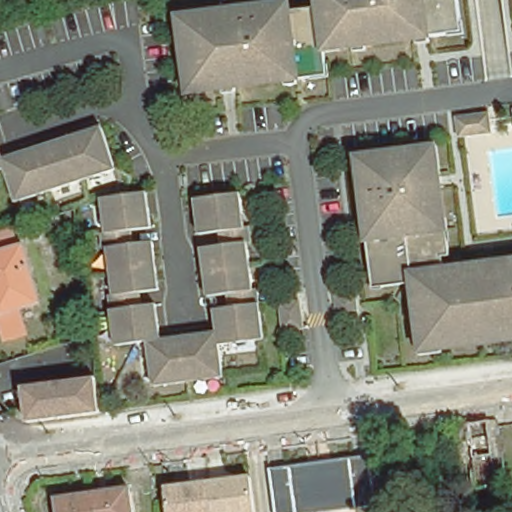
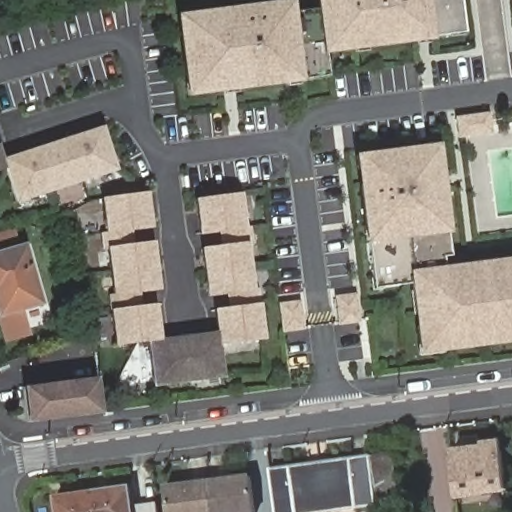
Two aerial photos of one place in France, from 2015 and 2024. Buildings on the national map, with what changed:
unchanged [(212,15),(222,14),(276,7),(287,5),(288,14),(317,11),(316,0),(457,0),(459,24),(461,35),(447,37),(426,40),(415,41),(364,47),(352,49),(338,51),(322,53),(324,67),(326,77),(310,80),(296,82),(284,83),(233,90),(222,91),(201,94),(187,96),(186,85),(177,19),(212,15)]
unchanged [(488,115),(491,135),(458,139),(455,119),(488,115)]
unchanged [(3,162),(35,152),(68,141),(102,130),(116,172),(83,184),(50,195),(17,206),(6,172),(0,174),(0,154),(3,162)]
unchanged [(409,293),(408,286),(381,289),(373,290),(372,281),(369,256),(367,242),(365,228),(363,207),(360,187),(359,176),(356,159),(364,158),(427,150),(435,149),(437,166),(438,177),(444,221),(447,244),(449,257),(441,258),(443,272),(475,267),(494,265),(512,262),(512,342),(486,345),(469,347),(437,351),(417,353),(416,348),(414,328),(409,293)]
unchanged [(148,343),(115,347),(111,312),(109,297),(114,297),(111,274),(108,251),(103,252),(101,236),(106,235),(102,201),(146,195),(151,231),(131,233),(133,247),(153,244),(156,268),(159,292),(139,295),(141,308),(156,307),(160,342),(166,341),(217,335),(214,312),(229,310),(228,296),(208,298),(205,275),(201,251),(222,248),(220,235),(200,237),(195,202),(240,196),(244,230),(249,230),(251,245),(246,246),(249,268),(252,292),(257,291),(259,305),(264,341),(219,347),(223,378),(188,383),(172,386),(154,387),(148,343)]
unchanged [(28,241),(45,298),(16,307),(22,329),(2,335),(0,327),(0,249),(28,241)]
unchanged [(355,295),(359,323),(339,326),(335,298),(355,295)]
unchanged [(303,330),(283,333),(279,305),(300,302),(303,330)]
unchanged [(97,380),(101,415),(28,425),(28,424),(24,389),(97,380)]
demolished [(480,427),(480,430),(490,428),(491,434),(492,440),(485,441),(490,482),(469,485),(462,430),(480,427)]
new [(490,493),(490,495),(458,498),(453,460),(453,456),(486,452),(503,449),(509,491),(490,493)]
unchanged [(366,455),(387,452),(394,501),(372,503),(366,455)]
unchanged [(349,507),(350,512),(310,512),(309,512),(306,512),(270,512),(265,467),(366,455),(372,503),(349,507)]
unchanged [(164,486),(249,476),(254,512),(168,512),(164,486)]
unchanged [(93,495),(130,490),(134,512),(96,512),(93,495)]
unchanged [(57,499),(93,495),(96,512),(58,512),(57,499)]

